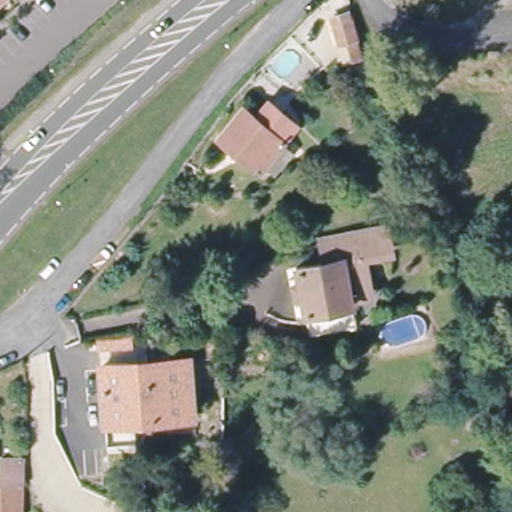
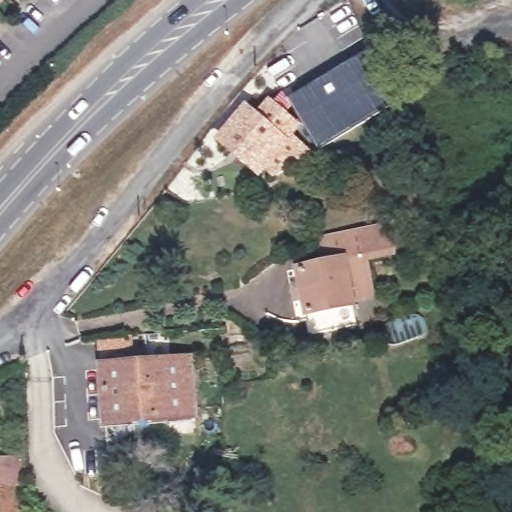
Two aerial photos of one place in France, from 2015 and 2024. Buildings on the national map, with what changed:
unchanged [(0,1),(0,0),(1,0),(0,1)]
demolished [(353,11),(362,42),(338,48),(330,16),(353,11)]
new [(368,49),(389,107),(388,108),(319,151),(287,99),(368,49)]
unchanged [(270,171),(262,165),(254,158),(248,165),(213,136),(239,104),(251,114),(263,98),(295,125),(282,140),(289,147),(270,171)]
unchanged [(352,303),(305,311),(296,265),(326,260),(322,236),(385,223),(390,248),(367,252),(371,271),(367,272),(369,282),(373,299),(352,303)]
unchanged [(194,418),(105,422),(102,368),(190,364),(194,418)]
unchanged [(20,455),(20,512),(0,512),(0,455),(20,455)]

